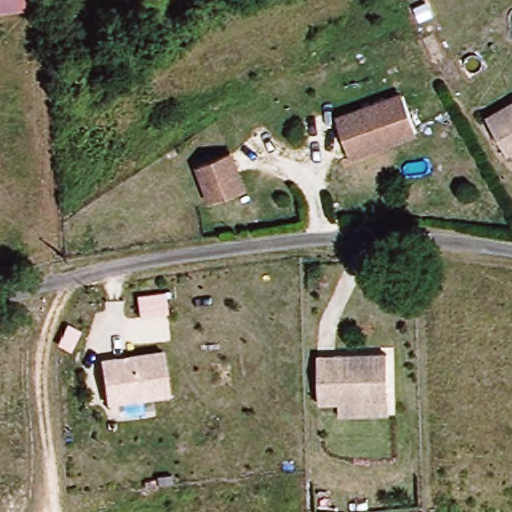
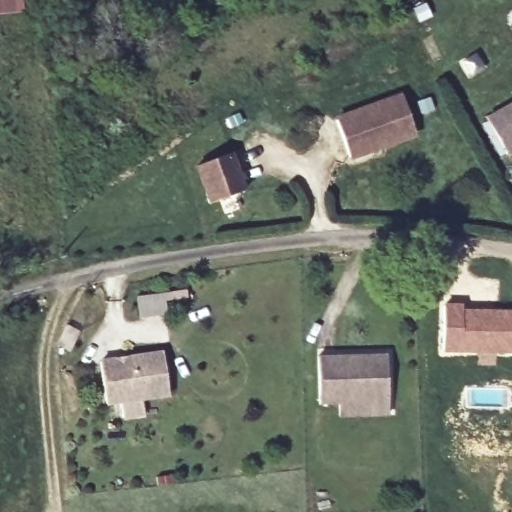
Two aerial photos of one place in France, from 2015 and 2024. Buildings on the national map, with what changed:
unchanged [(0,14),(0,0),(25,0),(26,11),(0,14)]
unchanged [(413,134),(346,155),(335,118),(402,97),(413,134)]
unchanged [(507,157),(487,121),(512,107),(512,155),(507,157)]
unchanged [(245,194),(212,205),(200,167),(232,156),(245,194)]
unchanged [(167,290),(170,316),(140,320),(137,295),(167,290)]
new [(444,302),(464,303),(464,308),(512,309),(512,355),(487,355),(442,353),(444,302)]
unchanged [(165,355),(171,396),(110,404),(103,363),(165,355)]
unchanged [(336,408),(316,408),(315,360),(382,358),(384,405),(385,418),(336,420),(336,408)]

